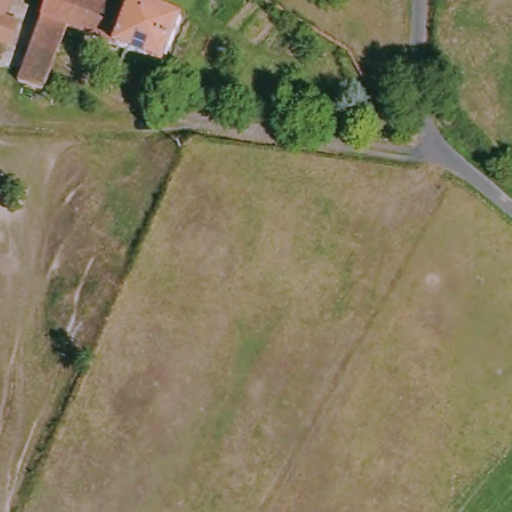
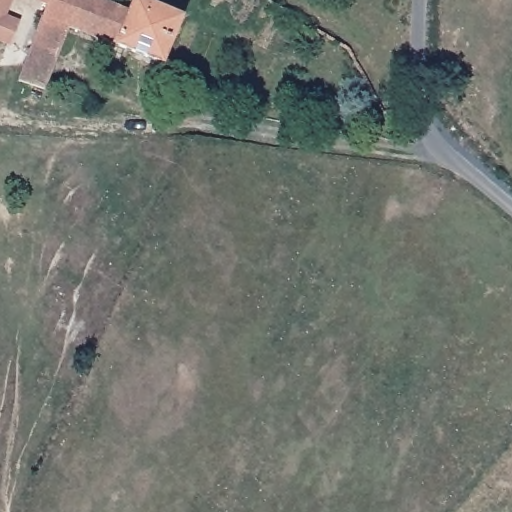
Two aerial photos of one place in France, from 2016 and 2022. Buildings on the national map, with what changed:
unchanged [(5,24),(21,28),(15,48),(0,43),(0,0),(13,0),(5,24)]
unchanged [(38,0),(101,0),(129,9),(132,0),(145,0),(184,13),(170,66),(71,31),(50,92),(48,96),(25,87),(26,84),(52,4),(38,0)]

